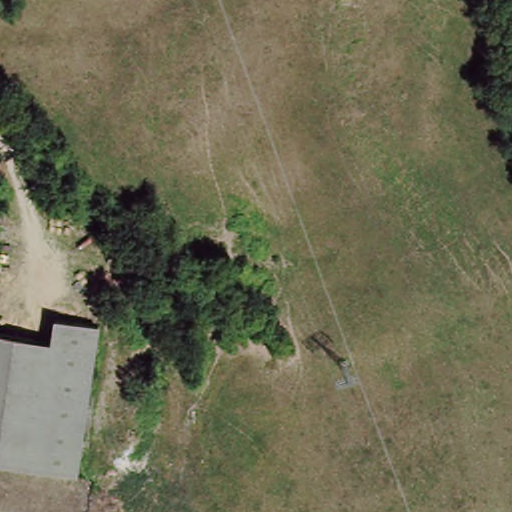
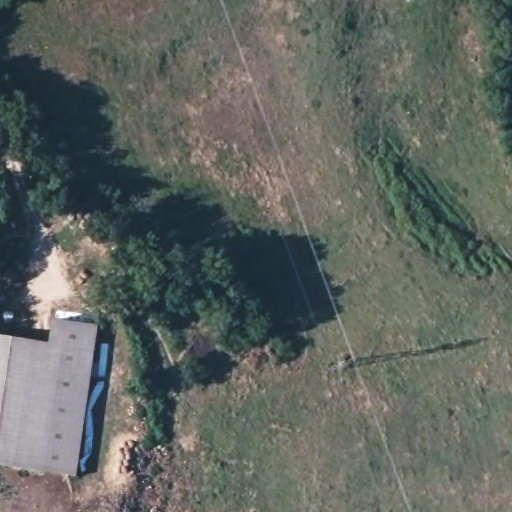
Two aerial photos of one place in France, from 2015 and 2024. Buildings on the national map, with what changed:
unchanged [(0,336),(49,342),(52,321),(99,330),(79,484),(0,471),(0,336)]

